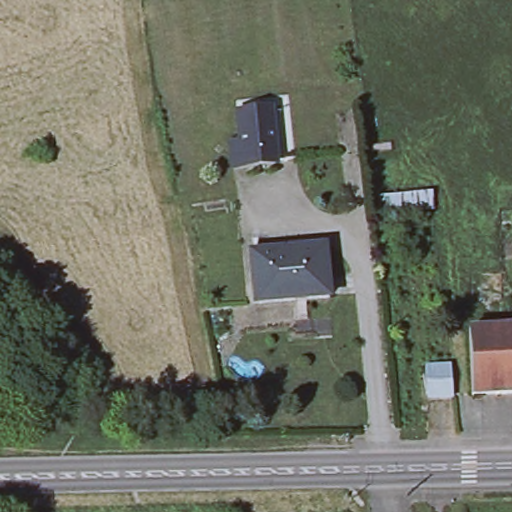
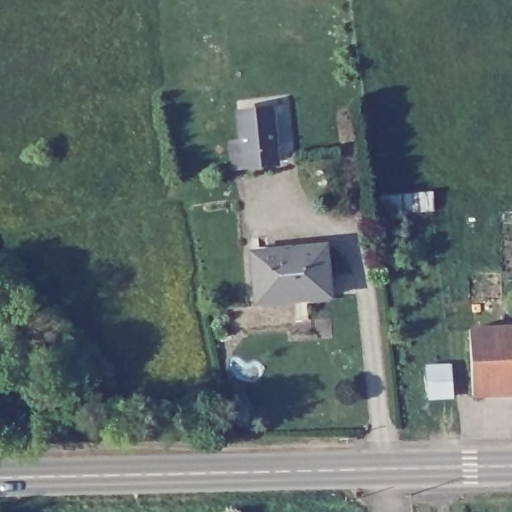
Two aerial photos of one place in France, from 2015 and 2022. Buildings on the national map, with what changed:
unchanged [(233,142),(243,140),(240,112),(273,108),(278,157),(245,162),(235,163),(233,142)]
unchanged [(383,216),(382,193),(434,191),(437,213),(383,216)]
unchanged [(251,250),(325,242),(329,293),(256,300),(251,250)]
unchanged [(512,325),(512,389),(474,391),(471,327),(512,325)]
unchanged [(426,362),(453,361),(455,396),(428,399),(426,362)]

